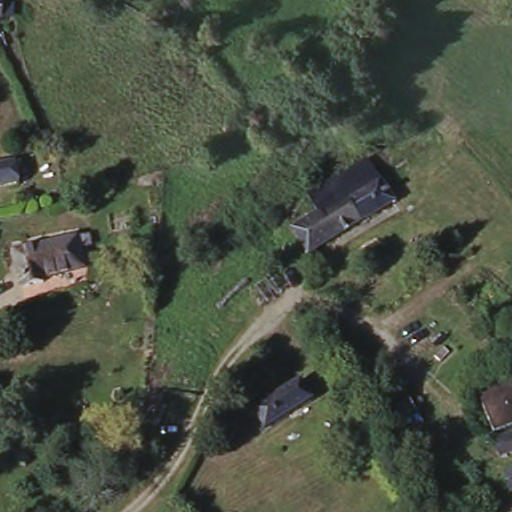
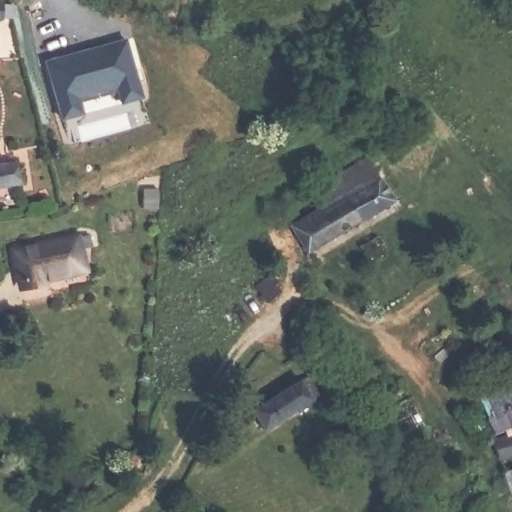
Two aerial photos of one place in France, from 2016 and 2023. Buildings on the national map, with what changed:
unchanged [(3,17),(0,17),(0,1),(4,1),(3,17)]
new [(126,40),(131,55),(142,98),(122,103),(118,87),(79,97),(83,113),(63,119),(48,62),(111,45),(126,40)]
unchanged [(313,253),(292,223),(318,206),(307,191),(370,153),(403,201),(313,253)]
unchanged [(21,186),(0,190),(0,168),(17,164),(21,186)]
unchanged [(89,235),(92,255),(78,257),(80,270),(44,275),(44,284),(16,288),(11,246),(89,235)]
unchanged [(302,376),(318,401),(267,431),(253,407),(302,376)]
unchanged [(492,386),(512,381),(512,421),(502,424),(495,396),(492,386)]
unchanged [(512,437),(512,454),(500,457),(496,440),(512,437)]
unchanged [(512,478),(512,496),(507,480),(512,478)]

